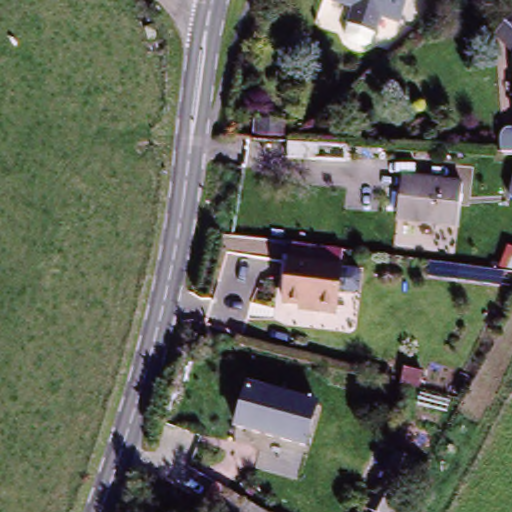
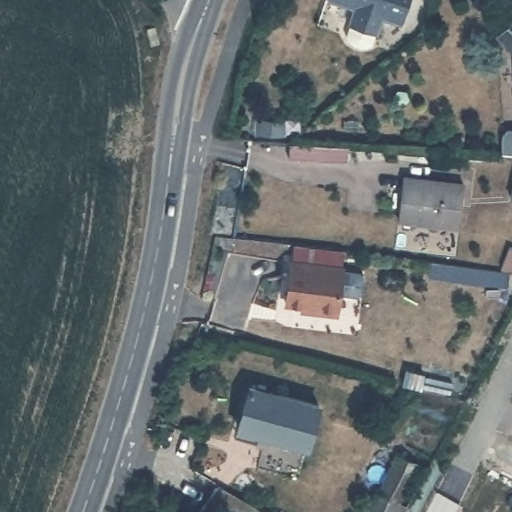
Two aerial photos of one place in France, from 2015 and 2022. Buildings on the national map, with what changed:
unchanged [(381,6),(376,19),(371,36),(363,40),(350,36),(346,28),(352,11),(355,0),(403,0),(399,12),(381,6)]
unchanged [(476,0),(492,0),(487,11),(474,4),(476,0)]
unchanged [(512,17),(512,45),(499,32),(512,17)]
unchanged [(160,41),(150,44),(145,27),(155,24),(160,41)]
unchanged [(254,136),(256,119),(285,123),(283,139),(254,136)]
unchanged [(503,135),(504,130),(508,125),(512,125),(512,147),(504,146),(503,135)]
unchanged [(288,159),(289,146),(319,149),(318,160),(288,159)]
unchanged [(400,215),(404,174),(463,183),(458,224),(400,215)]
unchanged [(512,195),(509,194),(512,182),(512,195)]
unchanged [(512,273),(501,271),(508,252),(512,253),(512,273)]
unchanged [(307,309),(290,308),(295,265),(346,272),(340,319),(323,316),(306,314),(307,309)]
unchanged [(420,389),(410,386),(413,374),(424,377),(420,389)]
unchanged [(318,409),(309,444),(239,427),(250,381),(264,384),(320,399),(318,409)]
unchanged [(369,433),(347,427),(352,410),(373,416),(369,433)]
unchanged [(401,497),(406,501),(400,512),(384,512),(369,504),(379,486),(382,488),(401,453),(418,462),(401,497)]
unchanged [(201,509),(216,483),(266,512),(205,512),(201,509)]

